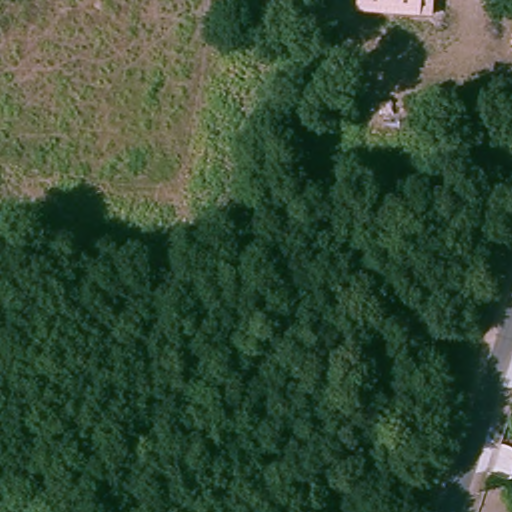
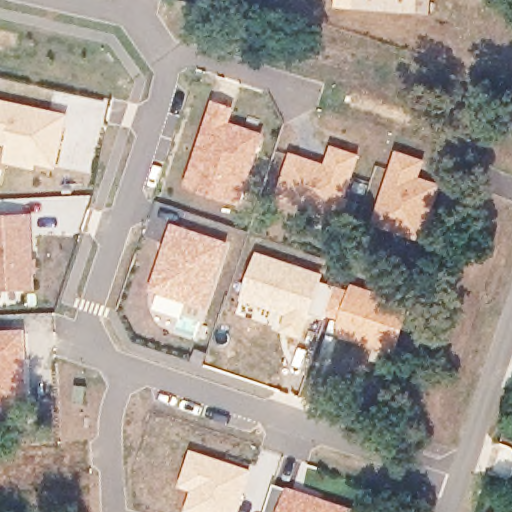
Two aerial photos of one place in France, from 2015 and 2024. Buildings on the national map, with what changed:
unchanged [(357,0),(434,0),(433,14),(420,13),(357,11),(357,0)]
new [(0,145),(0,105),(68,119),(57,169),(36,165),(35,170),(11,165),(14,148),(0,145)]
new [(226,131),(229,124),(263,136),(245,189),(227,183),(221,198),(189,185),(197,159),(202,161),(207,146),(203,145),(210,126),(226,131)]
new [(330,169),(336,151),(359,159),(352,177),(338,218),(281,197),(295,156),(330,169)]
new [(400,157),(422,164),(417,181),(440,189),(422,240),(377,225),(394,173),(400,157)]
new [(35,213),(37,258),(41,258),(41,271),(37,272),(37,289),(0,292),(0,215),(35,213)]
new [(177,228),(229,245),(207,308),(156,291),(177,228)]
new [(258,250),(325,272),(322,280),(311,314),(302,339),(278,330),(284,314),(242,299),(258,250)]
new [(322,280),(350,289),(352,281),(417,299),(395,360),(332,336),(337,321),(311,314),(322,280)]
new [(0,422),(0,335),(20,335),(21,352),(23,406),(24,421),(0,422)]
new [(192,449),(252,470),(239,512),(184,512),(190,492),(177,486),(192,449)]
new [(337,507),(353,512),(264,512),(273,485),(291,491),(289,496),(335,512),(337,507)]

